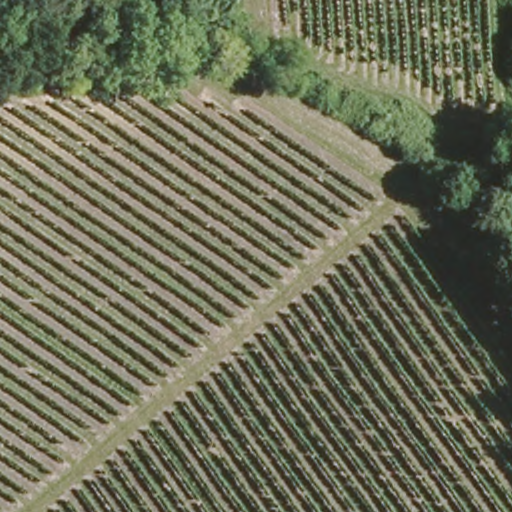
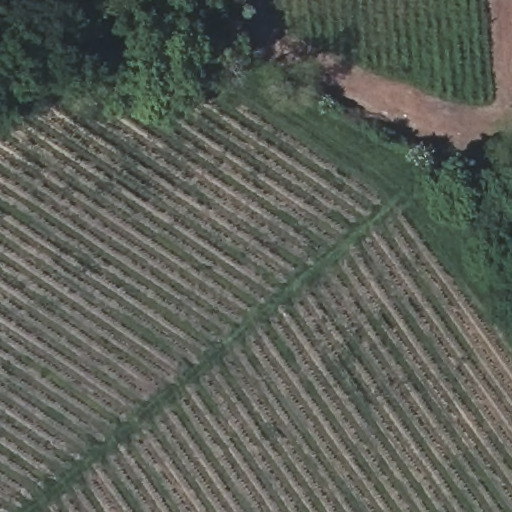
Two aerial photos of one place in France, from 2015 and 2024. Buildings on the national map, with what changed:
[]

